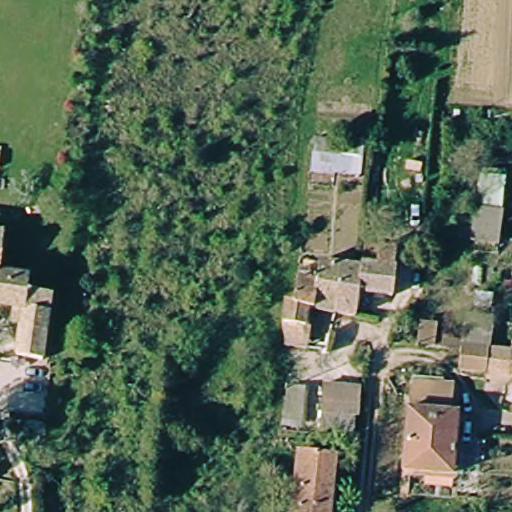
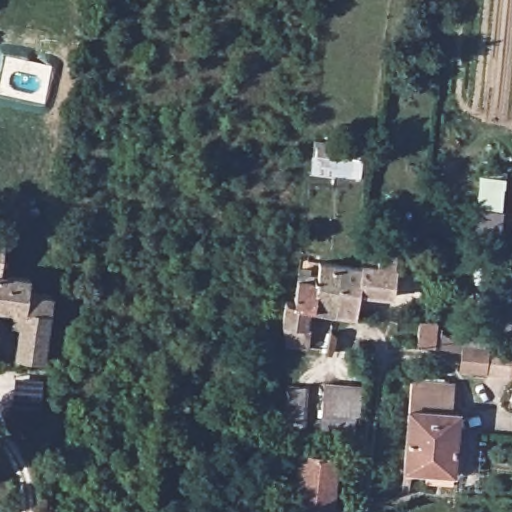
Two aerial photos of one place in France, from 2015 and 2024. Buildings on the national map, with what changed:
unchanged [(315,175),(318,137),(319,122),(340,125),(339,139),(369,140),(362,177),(315,175)]
unchanged [(475,242),(482,176),(507,178),(500,244),(475,242)]
unchanged [(0,270),(0,234),(4,235),(0,270)]
unchanged [(341,266),(335,316),(310,315),(310,325),(287,323),(287,322),(289,307),(294,308),(300,261),(341,266)]
unchanged [(366,268),(367,265),(400,268),(398,296),(361,292),(358,318),(335,316),(341,266),(366,268)]
unchanged [(26,310),(16,308),(0,306),(0,270),(31,275),(28,291),(26,310)]
unchanged [(20,357),(22,340),(26,310),(28,291),(50,295),(40,361),(20,357)]
unchanged [(466,313),(495,313),(492,345),(512,346),(512,377),(465,373),(466,313)]
unchanged [(418,345),(423,320),(440,322),(437,347),(418,345)]
unchanged [(459,380),(454,408),(462,410),(457,473),(405,471),(412,403),(415,378),(459,380)]
unchanged [(327,381),(362,385),(360,433),(326,431),(327,381)]
unchanged [(311,418),(288,415),(292,386),(314,388),(311,418)]
unchanged [(291,512),(299,452),(336,456),(329,512),(291,512)]

